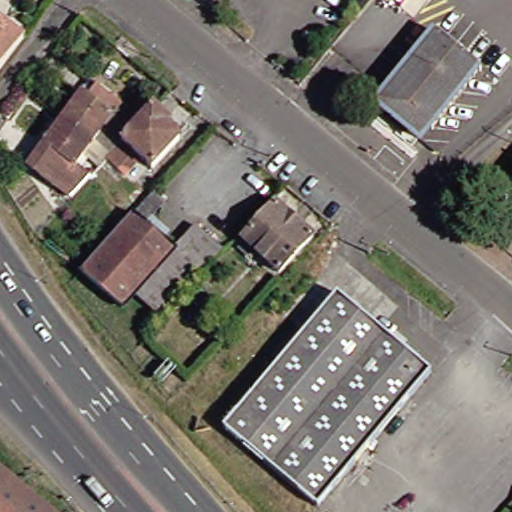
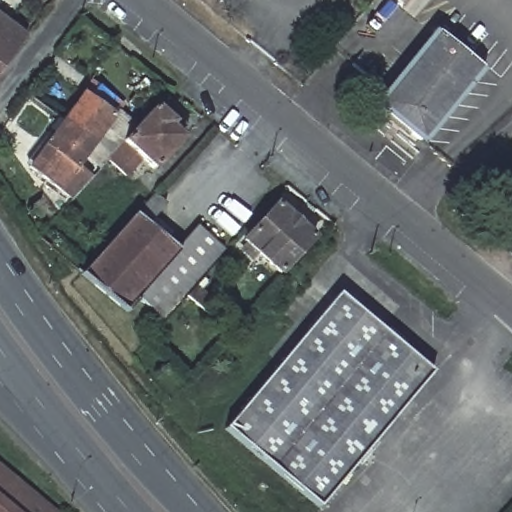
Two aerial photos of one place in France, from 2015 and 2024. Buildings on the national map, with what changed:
unchanged [(0,28),(14,39),(0,58),(0,28)]
unchanged [(417,128),(406,141),(368,110),(378,99),(371,93),(420,33),(470,73),(422,133),(417,128)]
unchanged [(75,94),(80,98),(90,86),(114,104),(87,141),(56,119),(75,94)]
unchanged [(101,160),(105,155),(115,144),(148,107),(166,123),(161,129),(174,139),(146,170),(133,159),(118,176),(101,160)]
unchanged [(87,141),(68,166),(84,179),(66,199),(21,166),(56,119),(87,141)]
unchanged [(507,192),(512,187),(512,197),(507,192)]
unchanged [(187,306),(174,295),(151,320),(124,295),(113,305),(73,273),(143,196),(154,205),(141,220),(159,235),(153,244),(162,252),(185,227),(214,253),(191,277),(195,281),(188,288),(196,296),(192,300),(203,310),(199,316),(187,306)]
unchanged [(269,273),(234,240),(266,206),(301,238),(269,273)]
unchanged [(216,430),(328,296),(423,374),(311,508),(216,430)]
unchanged [(0,512),(0,472),(48,512),(0,512)]

